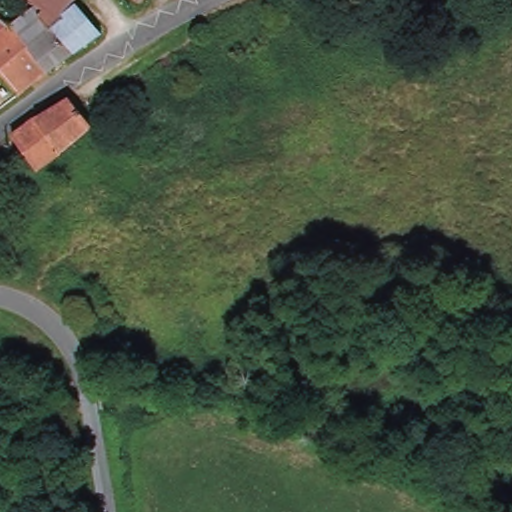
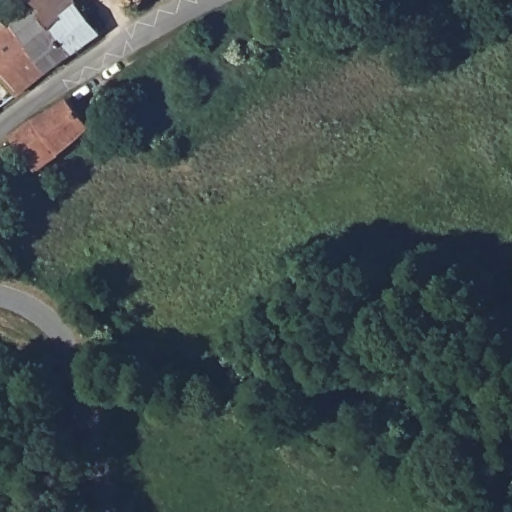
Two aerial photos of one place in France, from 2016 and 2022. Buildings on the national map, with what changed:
unchanged [(31,0),(81,0),(81,5),(107,36),(52,75),(25,99),(5,74),(0,77),(0,37),(39,8),(31,0)]
unchanged [(127,0),(138,0),(134,5),(127,0)]
unchanged [(90,125),(30,162),(21,148),(9,130),(71,95),(90,125)]

